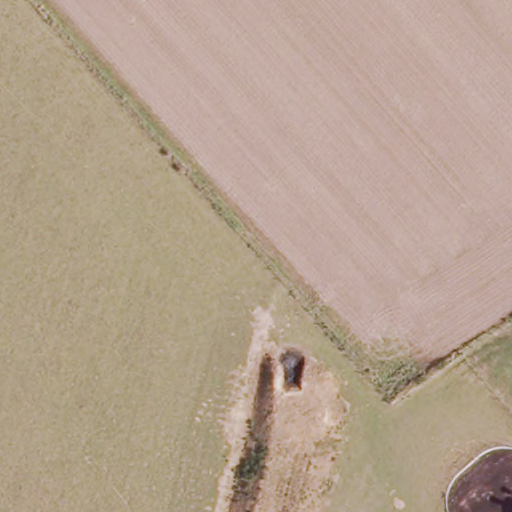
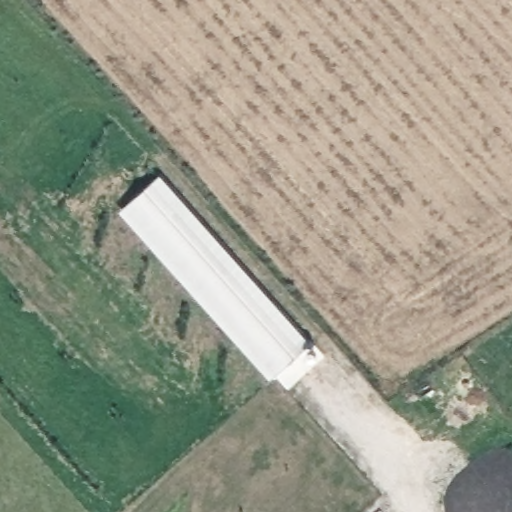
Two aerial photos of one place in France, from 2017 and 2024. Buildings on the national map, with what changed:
new [(120,210),(160,174),(311,342),(270,379),(120,210)]

